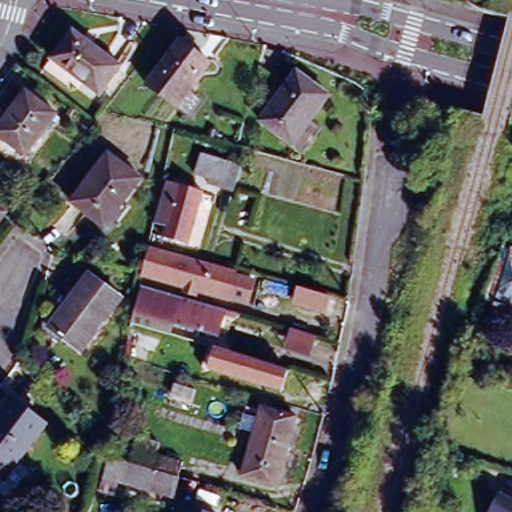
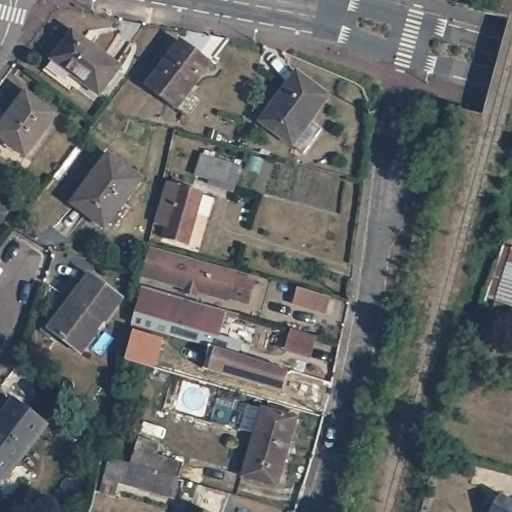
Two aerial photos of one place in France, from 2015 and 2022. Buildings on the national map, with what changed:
unchanged [(120,65),(96,94),(53,59),(77,30),(120,65)]
unchanged [(181,116),(170,108),(143,87),(178,43),(205,64),(186,89),(195,97),(181,116)]
unchanged [(299,148),(288,140),(259,117),(297,70),(326,93),(306,118),(316,126),(299,148)]
unchanged [(56,116),(24,157),(0,138),(0,127),(26,93),(56,116)]
unchanged [(193,172),(200,152),(229,161),(223,180),(193,172)]
unchanged [(108,158),(140,182),(104,229),(72,204),(108,158)]
unchanged [(181,197),(184,189),(202,194),(188,245),(169,239),(172,228),(158,224),(166,193),(181,197)]
unchanged [(0,220),(0,209),(5,213),(0,220)]
unchanged [(139,275),(140,269),(145,251),(150,252),(232,275),(225,301),(143,276),(139,275)]
unchanged [(512,257),(512,307),(497,302),(512,257)]
unchanged [(92,276),(122,299),(82,352),(51,329),(92,276)]
unchanged [(132,308),(135,290),(136,286),(177,297),(206,304),(227,310),(220,333),(216,333),(213,345),(151,328),(155,314),(132,308)]
unchanged [(323,295),(320,310),(295,303),(298,288),(323,295)]
unchanged [(133,329),(171,341),(167,355),(152,352),(149,366),(123,359),(133,329)]
unchanged [(321,339),(310,364),(286,356),(295,329),(321,339)]
unchanged [(207,353),(213,355),(215,348),(272,364),(271,367),(283,370),(278,389),(202,369),(207,353)]
unchanged [(3,481),(0,479),(0,422),(15,403),(45,425),(3,481)]
unchanged [(263,408),(298,418),(280,485),(243,475),(263,408)]
unchanged [(115,483),(111,497),(99,493),(109,461),(130,467),(134,452),(137,442),(157,447),(155,458),(181,466),(176,480),(170,500),(125,486),(115,483)]
unchanged [(500,496),(512,503),(512,512),(492,512),(500,496)]
unchanged [(192,512),(187,512),(188,510),(192,512)]

